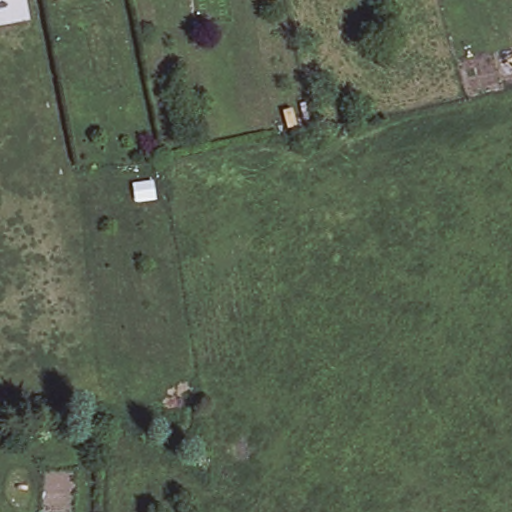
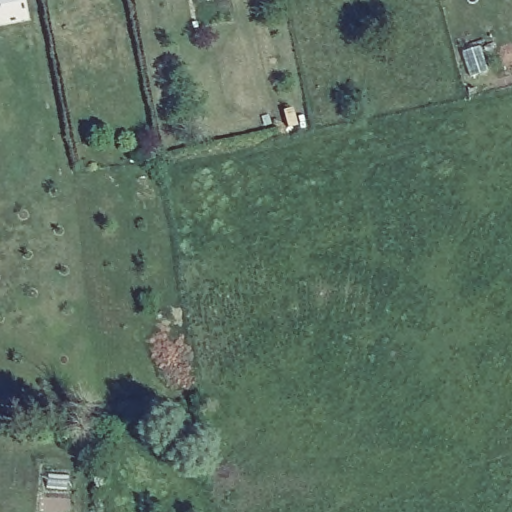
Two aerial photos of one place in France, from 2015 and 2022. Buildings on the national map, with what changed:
unchanged [(0,17),(0,0),(20,0),(22,13),(0,17)]

